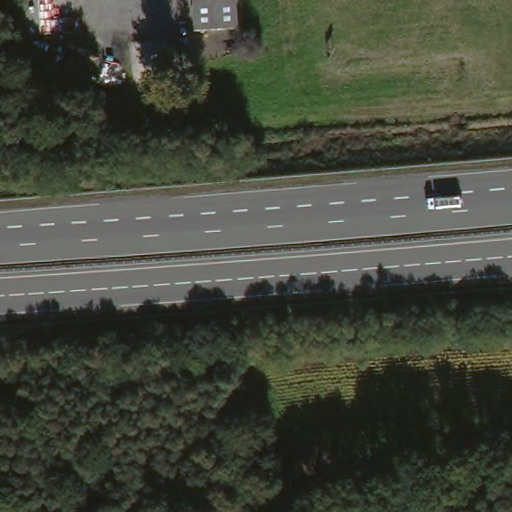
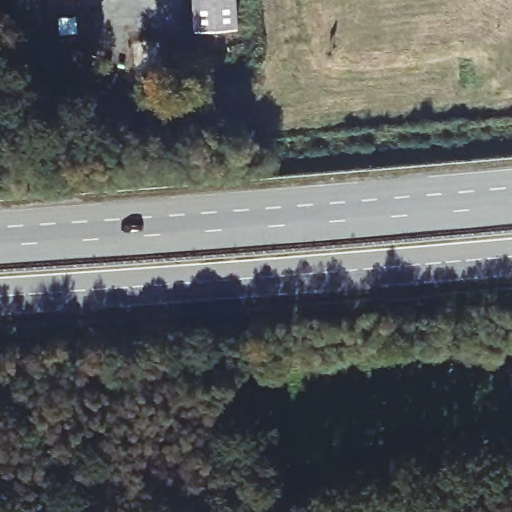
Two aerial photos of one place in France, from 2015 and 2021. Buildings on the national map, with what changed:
unchanged [(237,27),(197,29),(196,0),(236,0),(237,27)]

